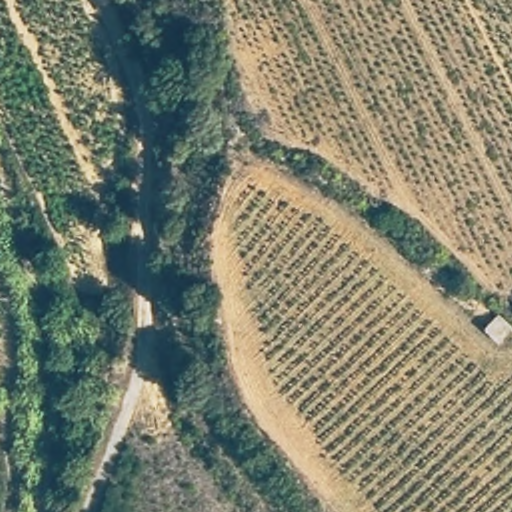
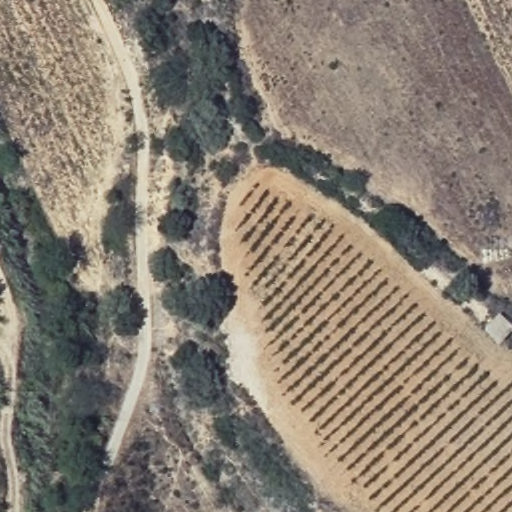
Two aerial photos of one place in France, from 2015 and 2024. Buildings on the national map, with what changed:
unchanged [(482,330),(497,313),(512,326),(512,333),(501,346),(482,330)]

